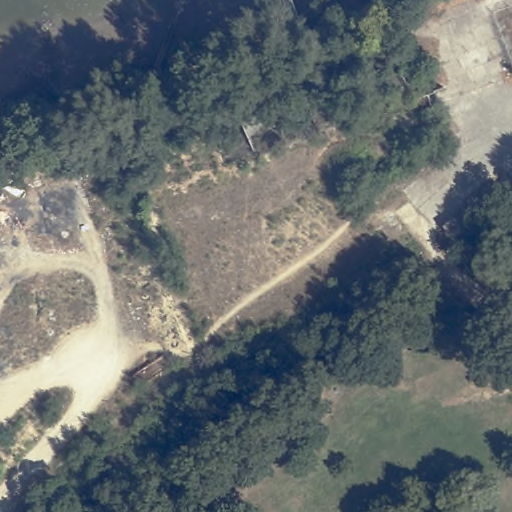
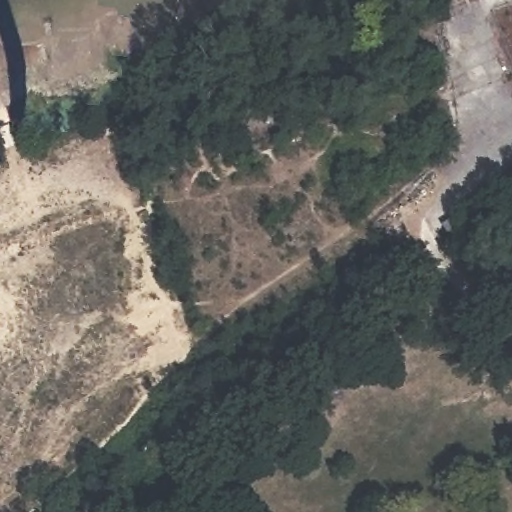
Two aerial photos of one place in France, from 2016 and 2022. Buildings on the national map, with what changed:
unchanged [(474,227),(454,241),(442,224),(464,210),(474,227)]

